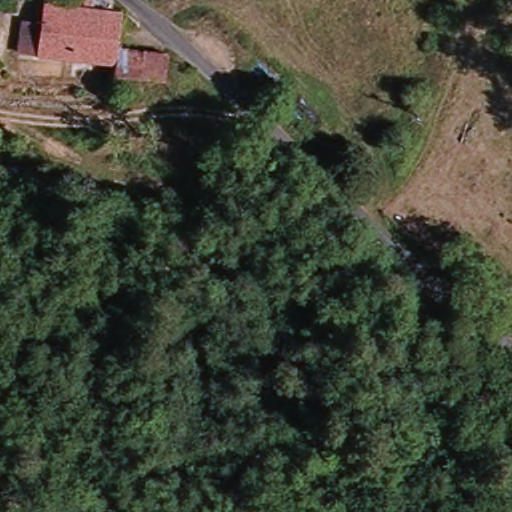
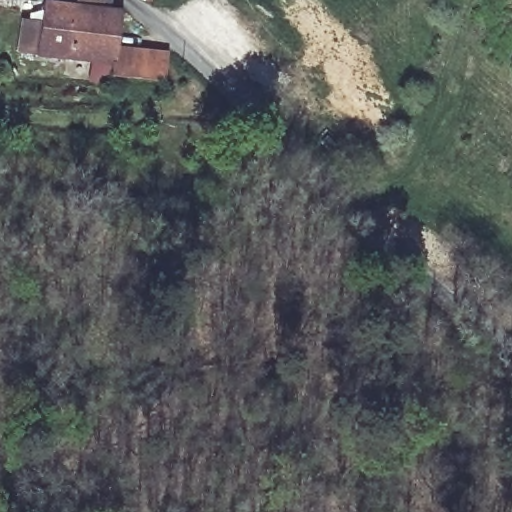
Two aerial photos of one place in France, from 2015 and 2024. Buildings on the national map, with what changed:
unchanged [(128,75),(112,75),(113,61),(31,54),(33,24),(52,25),(55,2),(93,6),(94,0),(122,0),(120,13),(131,15),(129,52),(171,56),(169,79),(128,75)]

